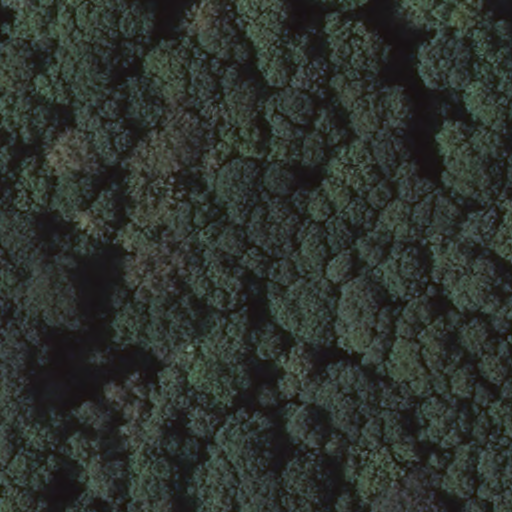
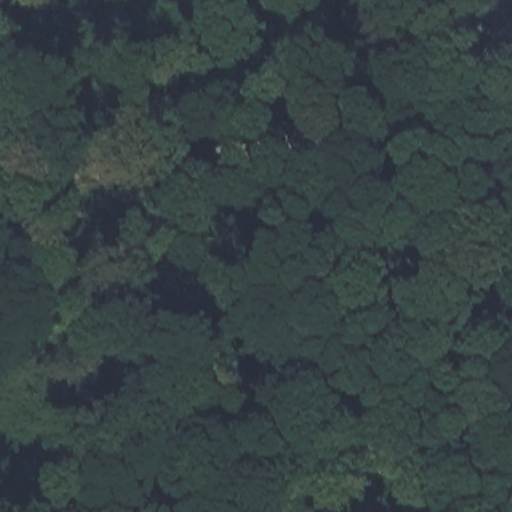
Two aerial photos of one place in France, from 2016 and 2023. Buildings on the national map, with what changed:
unchanged [(512,0),(512,20),(491,0),(512,0)]

